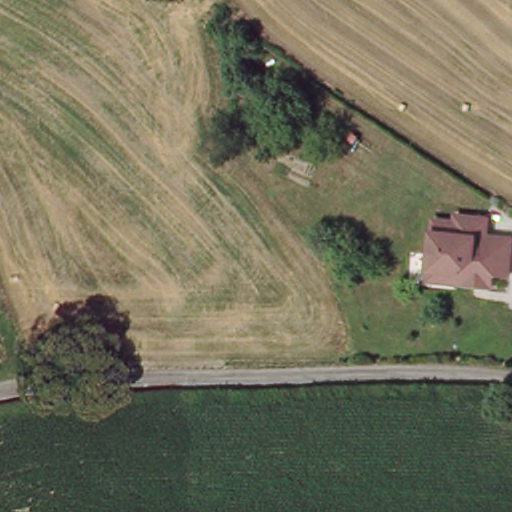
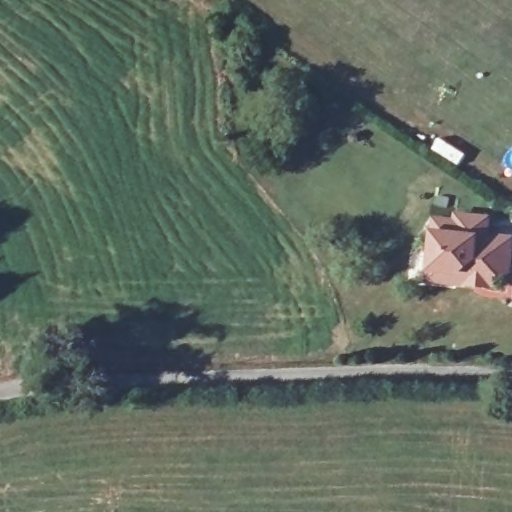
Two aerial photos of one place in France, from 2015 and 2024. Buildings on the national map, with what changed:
unchanged [(508,291),(425,279),(435,214),(458,215),(460,211),(493,217),(489,233),(512,238),(512,265),(508,291)]

